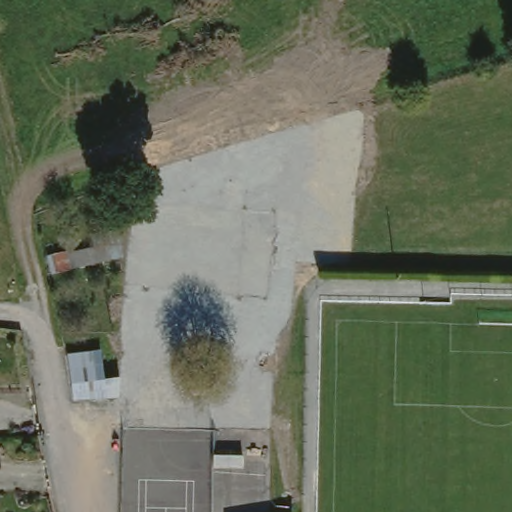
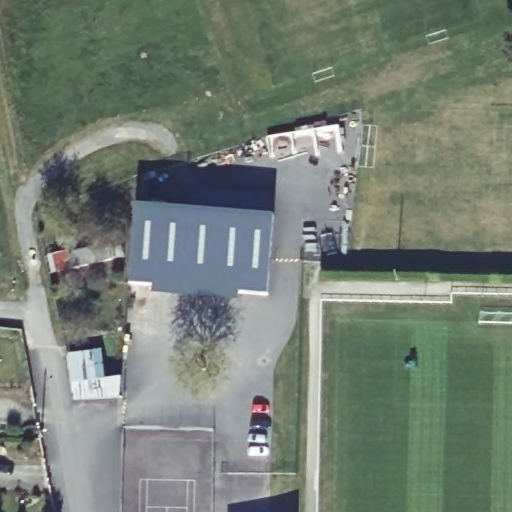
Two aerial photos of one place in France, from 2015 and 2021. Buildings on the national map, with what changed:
new [(138,185),(148,186),(147,206),(191,210),(273,217),(267,296),(129,284),(138,185)]
new [(192,190),(275,197),(273,217),(191,210),(192,190)]
unchanged [(57,251),(108,245),(110,259),(60,266),(57,251)]
unchanged [(93,354),(92,385),(116,384),(114,399),(72,404),(67,358),(93,354)]

